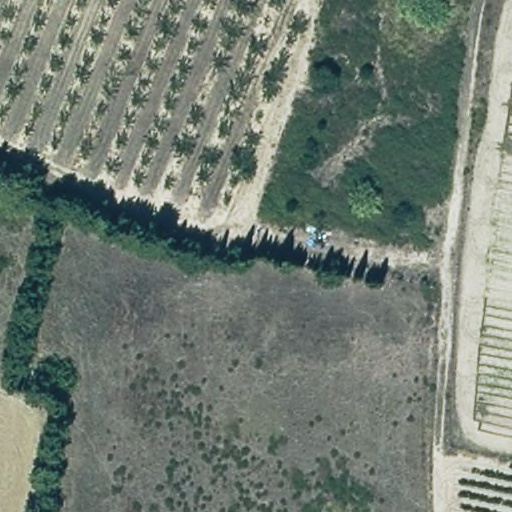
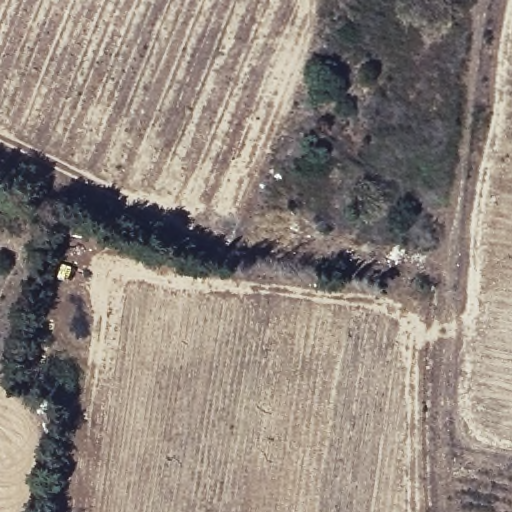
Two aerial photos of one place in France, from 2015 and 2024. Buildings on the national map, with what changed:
unchanged [(55,359),(50,382),(26,376),(29,357),(55,359)]

